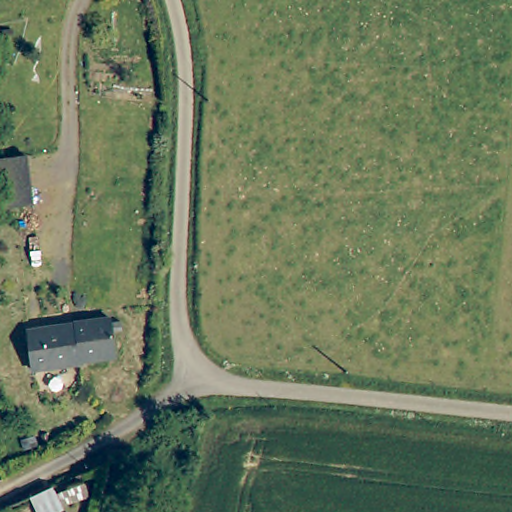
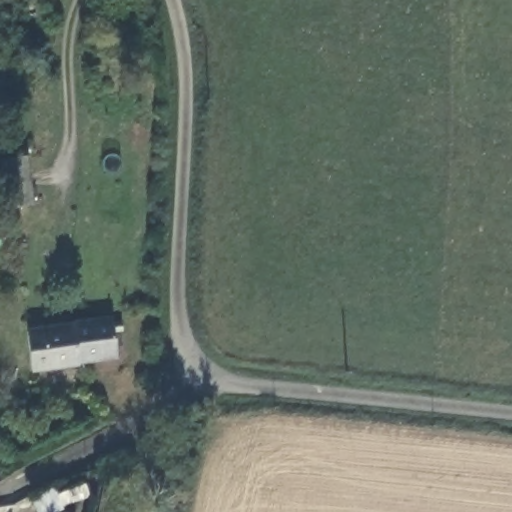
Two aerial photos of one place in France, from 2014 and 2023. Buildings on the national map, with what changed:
unchanged [(26,155),(32,205),(3,210),(0,187),(0,159),(26,155)]
unchanged [(79,364),(73,367),(31,374),(25,335),(110,321),(115,358),(98,361),(79,364)]
unchanged [(30,501),(49,491),(57,511),(55,512),(35,512),(30,501)]

